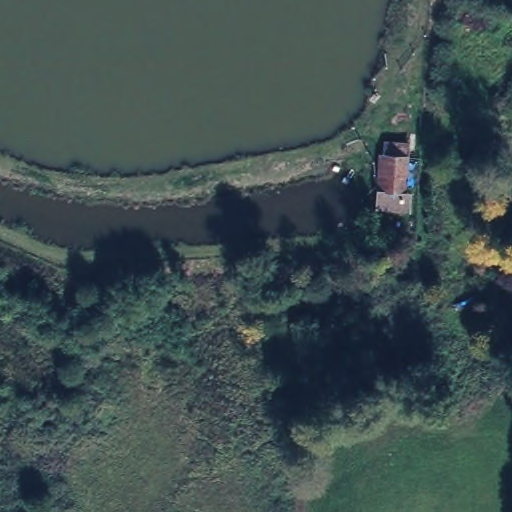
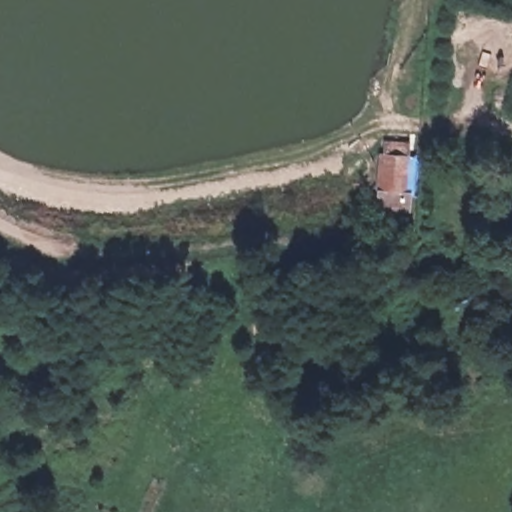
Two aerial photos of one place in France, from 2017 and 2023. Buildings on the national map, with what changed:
unchanged [(385,140),(410,142),(407,192),(412,193),(411,212),(376,209),(379,154),(385,154),(385,140)]

